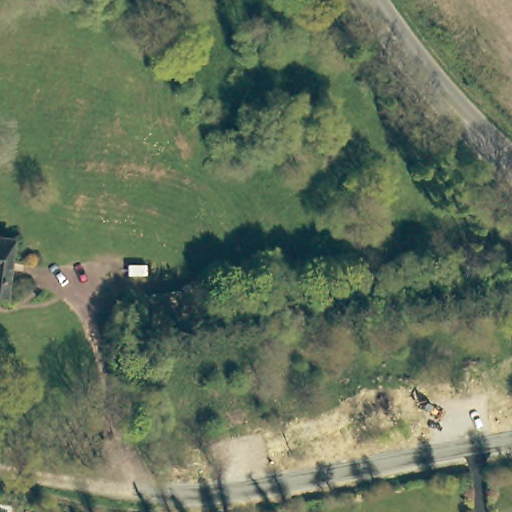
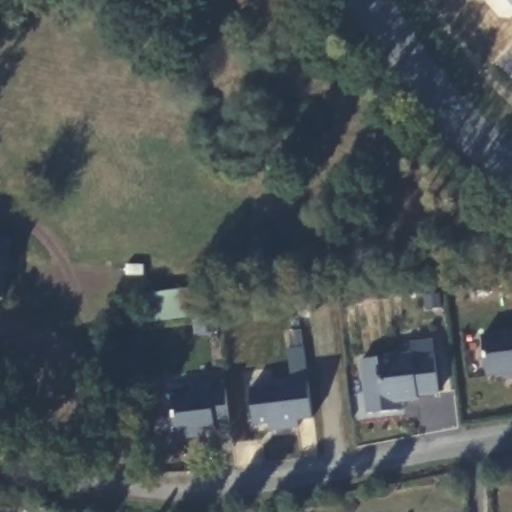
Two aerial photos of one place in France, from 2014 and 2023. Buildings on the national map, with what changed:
unchanged [(2,299),(0,299),(0,238),(10,239),(2,299)]
unchanged [(194,316),(146,322),(142,297),(190,290),(194,316)]
new [(512,331),(512,378),(502,379),(502,376),(485,378),(482,334),(512,331)]
new [(441,393),(419,396),(420,401),(402,403),(402,409),(367,414),(360,359),(381,356),(410,353),(409,342),(432,339),(441,393)]
new [(316,417),(299,420),(300,429),(271,432),(268,422),(255,424),(250,388),(308,380),(316,417)]
new [(232,422),(216,425),(217,431),(199,433),(199,435),(176,438),(170,395),(189,392),(188,385),(212,382),(213,390),(225,388),(232,422)]

